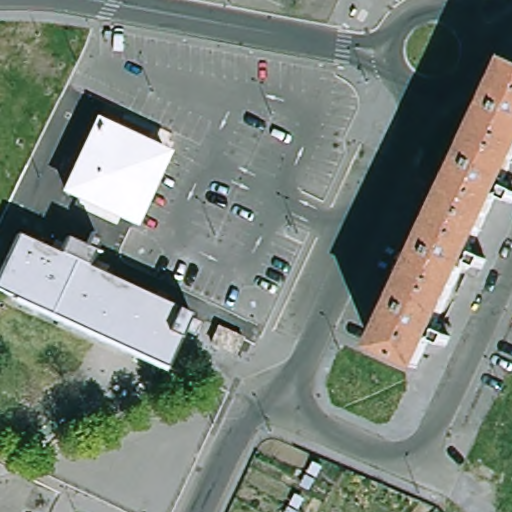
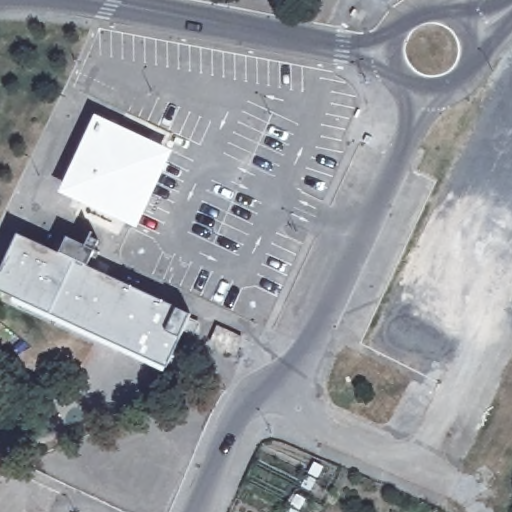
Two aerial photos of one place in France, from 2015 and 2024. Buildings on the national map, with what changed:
demolished [(507,61),(512,63),(512,115),(487,104),(507,61)]
demolished [(487,104),(512,115),(512,158),(503,177),(462,158),(487,104)]
unchanged [(96,123),(166,154),(143,207),(135,223),(126,219),(65,192),(96,123)]
demolished [(503,177),(501,182),(509,186),(502,200),(495,196),(467,254),(475,258),(469,272),(461,268),(435,325),(442,329),(436,343),(429,339),(415,369),(373,351),(462,158),(503,177)]
unchanged [(168,370),(0,292),(0,269),(16,235),(193,318),(168,370)]
unchanged [(237,358),(212,347),(219,330),(245,341),(237,358)]

